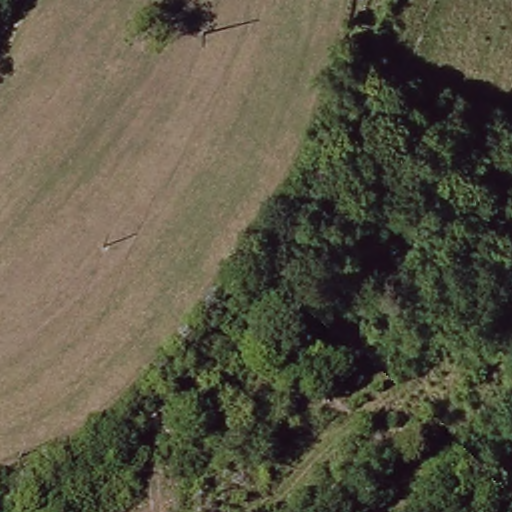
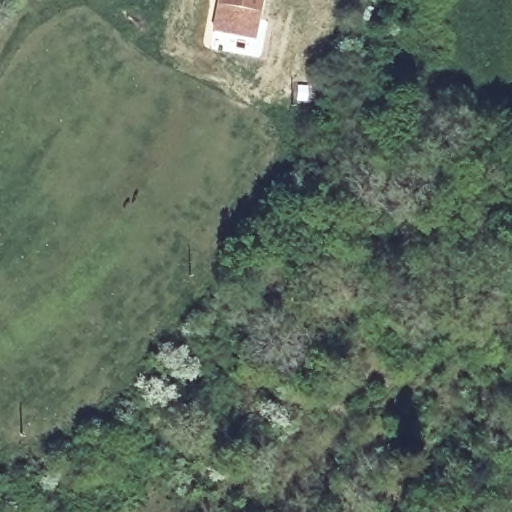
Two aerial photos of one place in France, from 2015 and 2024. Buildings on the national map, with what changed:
new [(216,0),(262,0),(255,39),(211,30),(216,0)]

